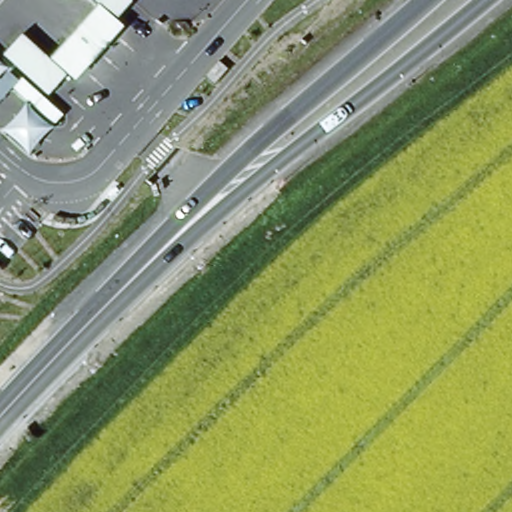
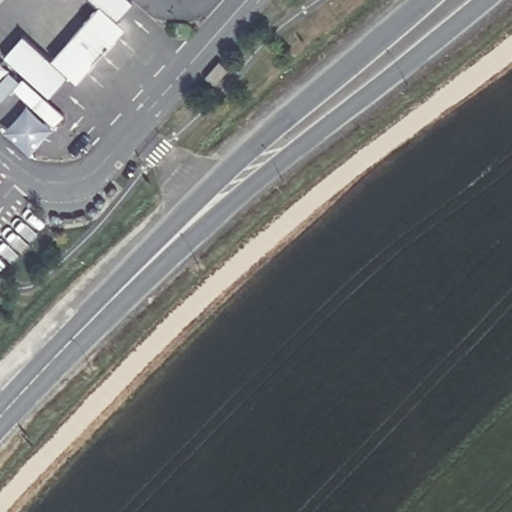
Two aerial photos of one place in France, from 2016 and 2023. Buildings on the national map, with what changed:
unchanged [(99,2),(97,5),(91,0),(133,0),(134,1),(118,20),(99,2)]
unchanged [(126,27),(78,80),(51,56),(99,2),(126,27)]
unchanged [(51,56),(69,72),(49,96),(4,56),(24,35),(51,56)]
unchanged [(232,72),(220,86),(211,79),(223,65),(232,72)]

